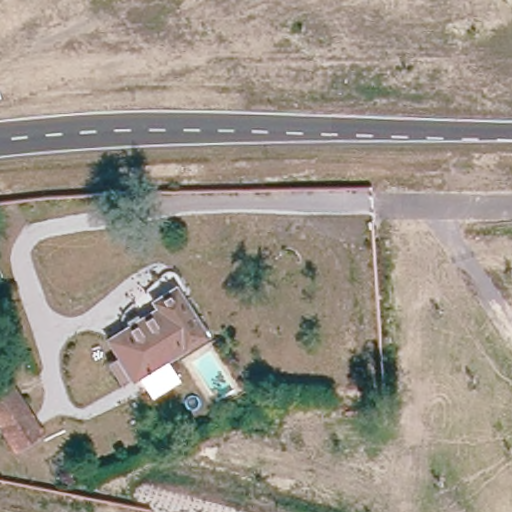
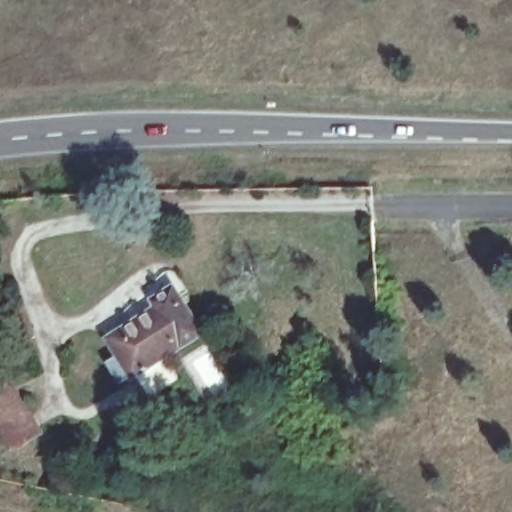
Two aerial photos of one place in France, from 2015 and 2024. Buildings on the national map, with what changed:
unchanged [(199,340),(116,387),(101,360),(114,353),(106,338),(158,309),(154,301),(171,291),(199,340)]
unchanged [(35,437),(7,452),(0,440),(0,389),(7,386),(24,416),(35,437)]

